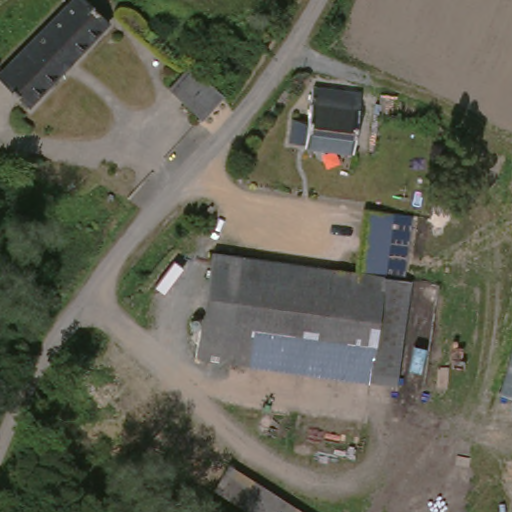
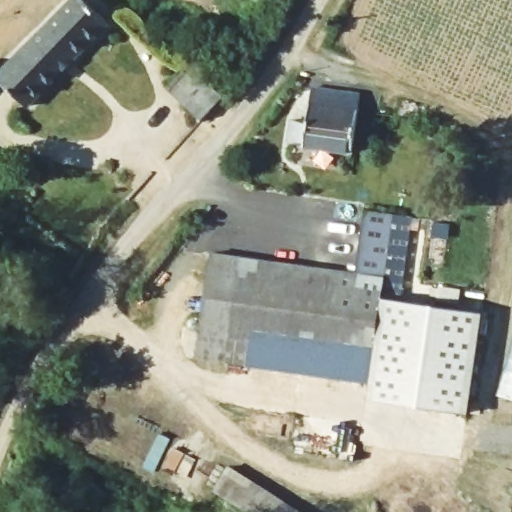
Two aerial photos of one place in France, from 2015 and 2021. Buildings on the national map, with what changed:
unchanged [(67,0),(84,0),(107,20),(28,105),(0,81),(0,71),(67,0)]
unchanged [(172,89),(192,67),(225,97),(204,119),(172,89)]
unchanged [(296,115),(312,117),(317,82),(363,87),(356,143),(294,136),(296,115)]
unchanged [(394,216),(386,276),(371,380),(196,358),(208,257),(356,275),(364,212),(394,216)]
new [(386,276),(394,216),(414,216),(403,299),(483,313),(468,410),(369,396),(371,380),(383,296),(386,276)]
demolished [(371,380),(386,276),(411,278),(411,280),(397,383),(371,380)]
unchanged [(512,334),(512,402),(494,397),(512,334)]
unchanged [(318,512),(253,512),(210,485),(229,457),(318,512)]

